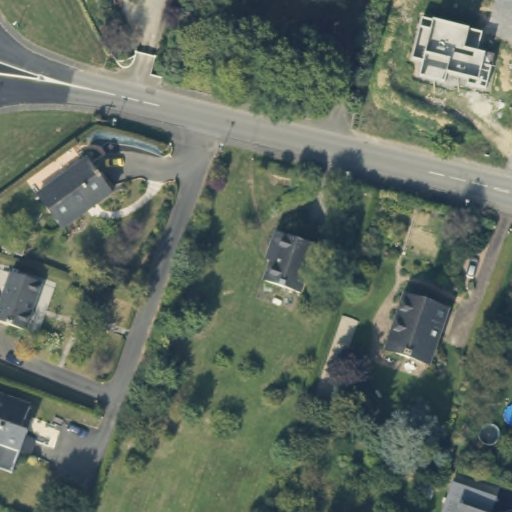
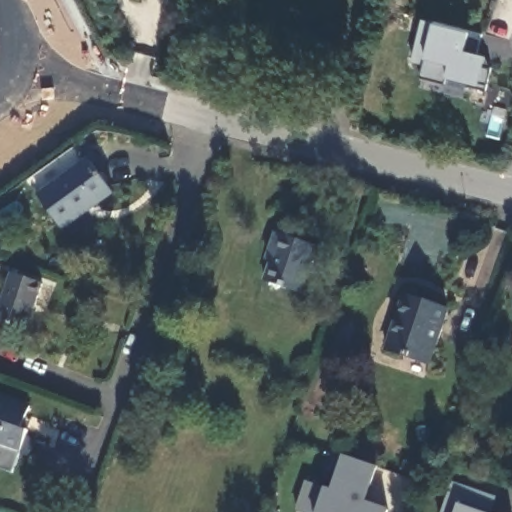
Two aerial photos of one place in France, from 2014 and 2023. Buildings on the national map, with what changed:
unchanged [(433,21),(469,29),(482,34),(477,52),(485,53),(482,65),(490,68),(486,88),(466,84),(467,80),(447,76),(445,82),(419,76),(422,63),(412,60),(422,18),(433,21)]
unchanged [(88,160),(112,192),(61,229),(37,196),(88,160)]
unchanged [(314,251),(299,299),(263,285),(270,266),(266,264),(269,255),(275,237),(314,251)]
unchanged [(0,305),(11,273),(42,284),(26,331),(0,323),(0,305)]
unchanged [(404,295),(447,310),(427,365),(386,351),(404,295)]
unchanged [(27,430),(32,432),(30,436),(24,454),(0,445),(0,396),(34,408),(27,430)]
new [(367,502),(388,509),(388,512),(297,512),(295,511),(306,481),(325,488),(332,489),(343,455),(379,466),(367,502)]
unchanged [(497,498),(493,512),(442,512),(452,483),(497,498)]

